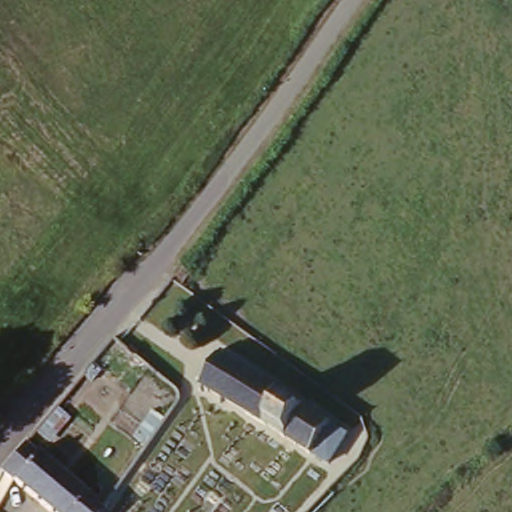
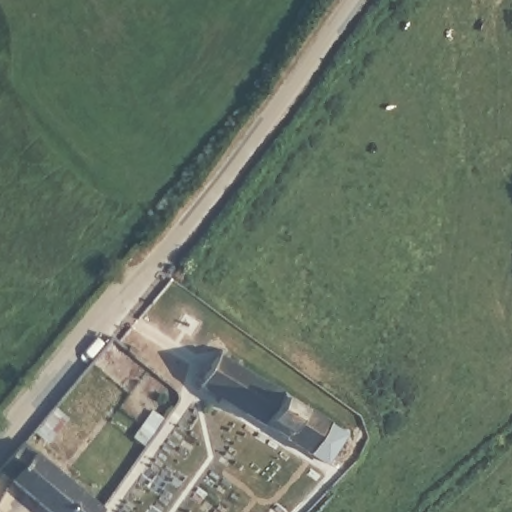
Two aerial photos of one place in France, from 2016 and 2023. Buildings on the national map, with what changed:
unchanged [(128,336),(135,329),(142,336),(135,343),(128,336)]
unchanged [(358,431),(339,463),(210,388),(230,354),(358,431)]
unchanged [(56,460),(35,490),(10,472),(32,442),(56,460)]
unchanged [(114,504),(108,512),(64,512),(35,490),(56,460),(114,504)]

